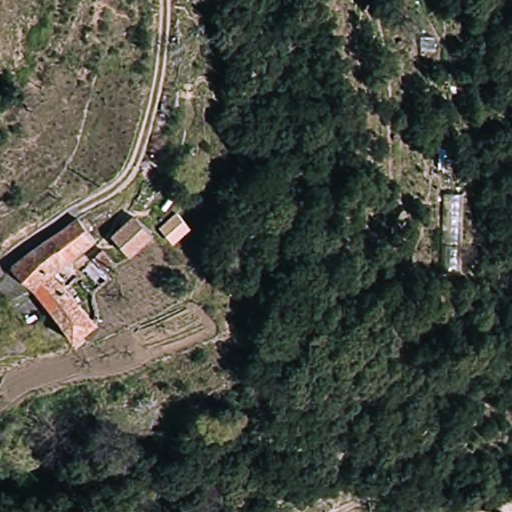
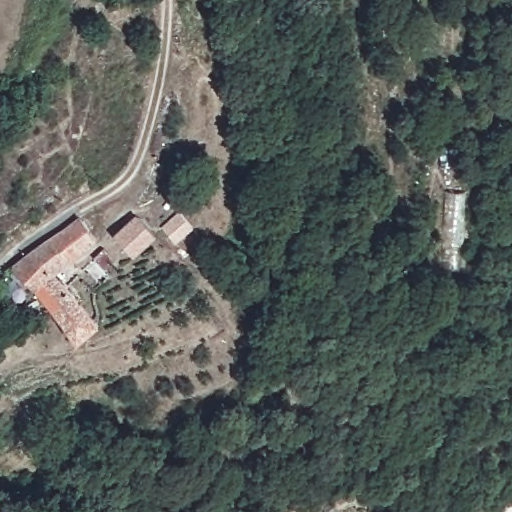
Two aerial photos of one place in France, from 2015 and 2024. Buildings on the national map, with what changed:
unchanged [(23,271),(80,213),(103,239),(64,275),(42,294),(23,271)]
unchanged [(164,232),(144,257),(123,235),(144,213),(164,232)]
unchanged [(48,304),(42,294),(64,275),(105,324),(82,346),(48,304)]

